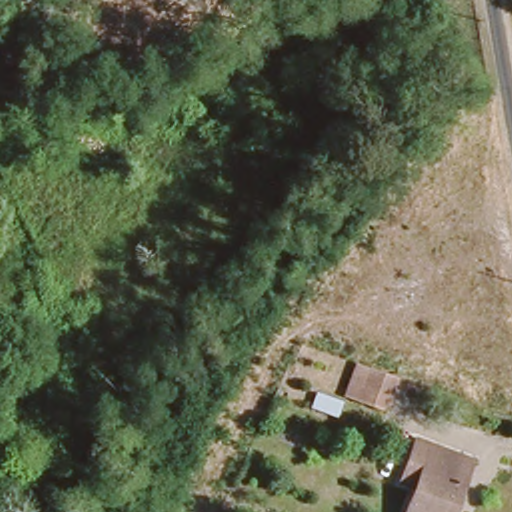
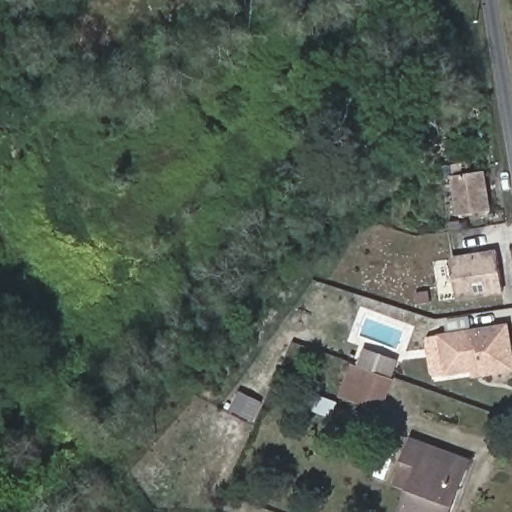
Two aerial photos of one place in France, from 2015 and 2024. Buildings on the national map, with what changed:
new [(454,175),(486,170),(493,211),(460,216),(454,175)]
new [(452,256),(497,250),(505,293),(459,301),(452,256)]
new [(508,325),(512,342),(512,373),(473,377),(472,372),(445,375),(439,335),(508,325)]
unchanged [(383,411),(336,393),(348,360),(396,374),(383,411)]
unchanged [(432,466),(466,475),(454,511),(448,509),(447,512),(405,512),(410,497),(402,495),(417,451),(435,456),(432,466)]

